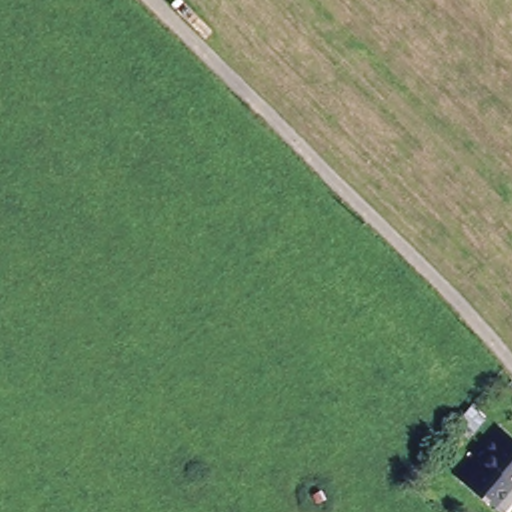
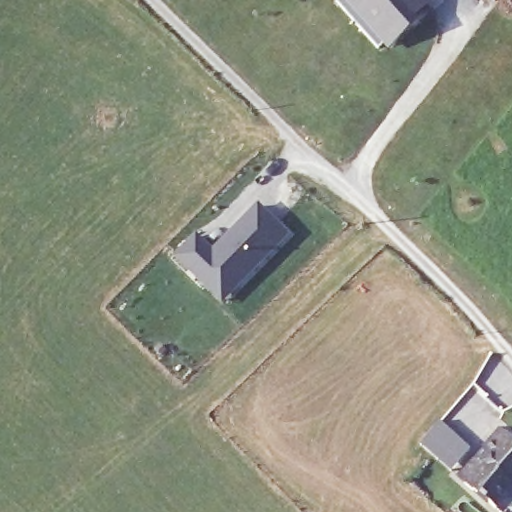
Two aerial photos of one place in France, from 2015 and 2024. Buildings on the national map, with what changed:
new [(368,0),(393,29),(425,0),(435,0),(391,39),(387,35),(380,41),(343,0),(357,0),(362,5),(368,0)]
new [(357,0),(368,0),(362,5),(357,0)]
new [(368,0),(425,0),(393,29),(368,0)]
new [(195,231),(212,246),(258,200),(294,234),(223,305),(171,255),(195,231)]
unchanged [(493,504),(461,473),(504,425),(512,433),(512,502),(502,512),(501,512),(493,504)]

